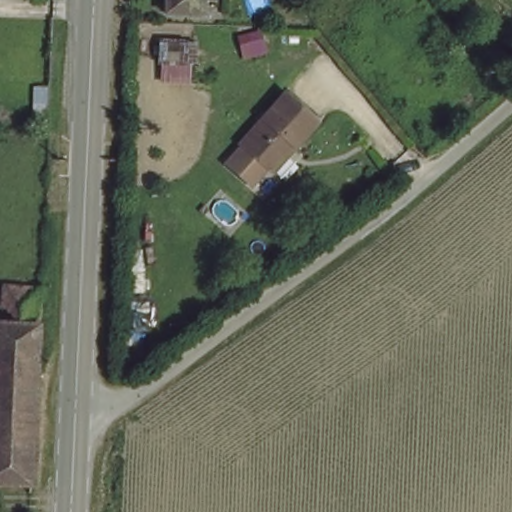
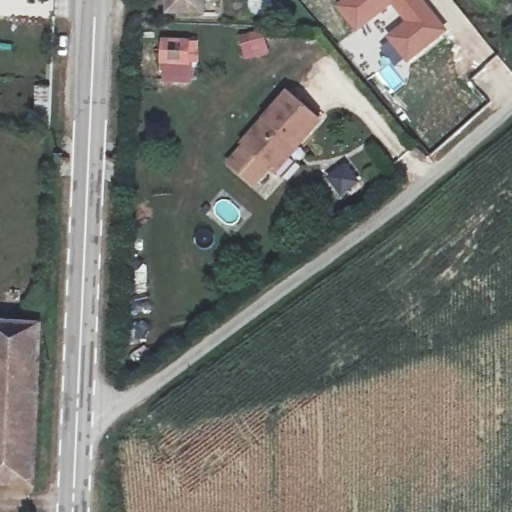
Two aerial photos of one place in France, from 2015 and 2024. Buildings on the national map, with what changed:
unchanged [(205,5),(168,4),(168,0),(205,0),(205,5)]
new [(339,0),(424,0),(448,30),(407,63),(385,35),(403,21),(391,5),(354,32),(333,5),(339,0)]
unchanged [(178,62),(152,59),(155,38),(180,41),(178,62)]
unchanged [(255,132),(300,83),(330,112),(283,159),(281,157),(264,173),(240,149),(256,133),(255,132)]
unchanged [(0,484),(0,325),(14,325),(15,291),(51,291),(48,356),(43,486),(0,484)]

